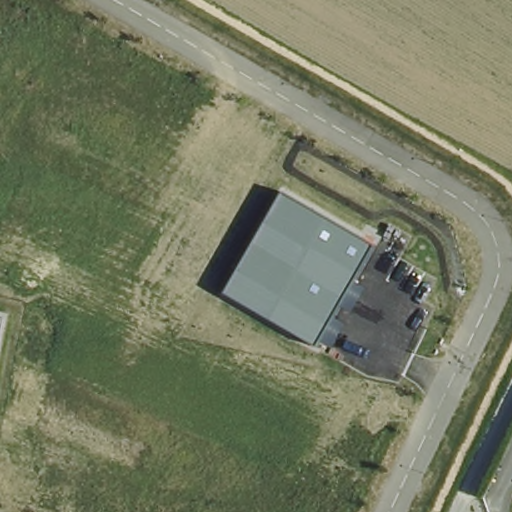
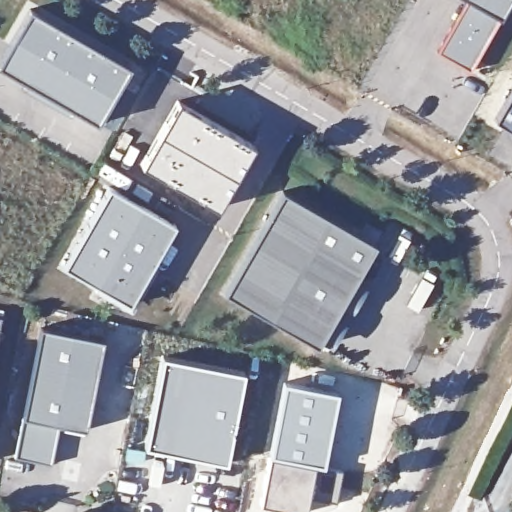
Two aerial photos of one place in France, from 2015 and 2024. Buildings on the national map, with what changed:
new [(95,113),(0,59),(0,45),(26,0),(29,0),(128,55),(95,113)]
new [(469,56),(435,37),(455,0),(499,0),(469,56)]
new [(494,120),(512,86),(512,130),(494,120)]
new [(178,101),(253,143),(216,208),(140,165),(178,101)]
new [(108,186),(176,224),(148,276),(130,307),(60,265),(108,186)]
unchanged [(283,193),(374,246),(317,347),(226,294),(283,193)]
unchanged [(0,321),(0,315),(1,316),(0,321)]
unchanged [(40,318),(103,330),(86,421),(60,416),(52,455),(15,448),(40,318)]
new [(245,371),(228,464),(144,449),(147,426),(161,355),(245,371)]
new [(284,372),(338,382),(324,456),(270,446),(284,372)]
new [(143,465),(123,464),(125,447),(144,449),(143,465)]
new [(335,503),(308,499),(306,512),(287,512),(261,507),(268,458),(340,471),(335,503)]

